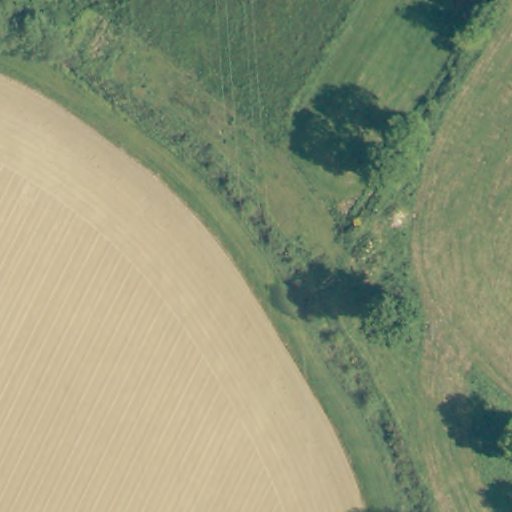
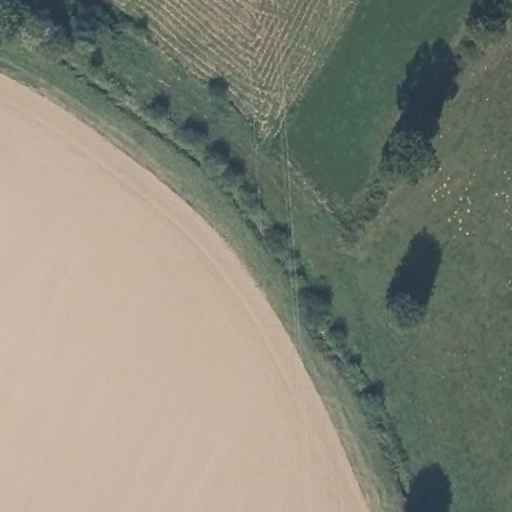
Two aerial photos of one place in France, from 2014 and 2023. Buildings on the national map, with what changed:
[]

